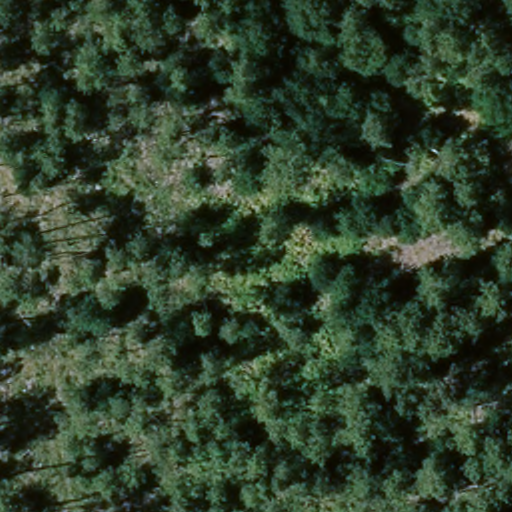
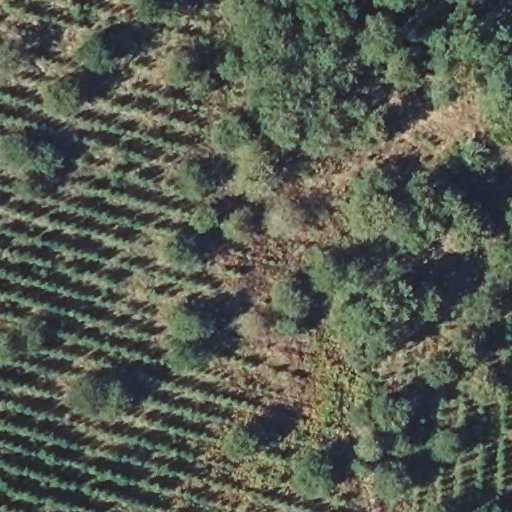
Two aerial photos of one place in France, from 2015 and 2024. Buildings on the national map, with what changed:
[]

